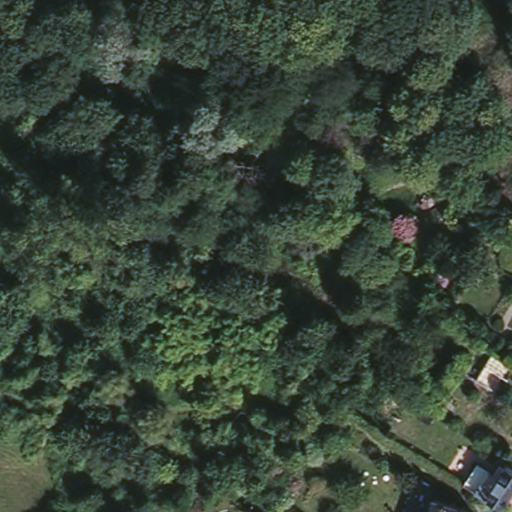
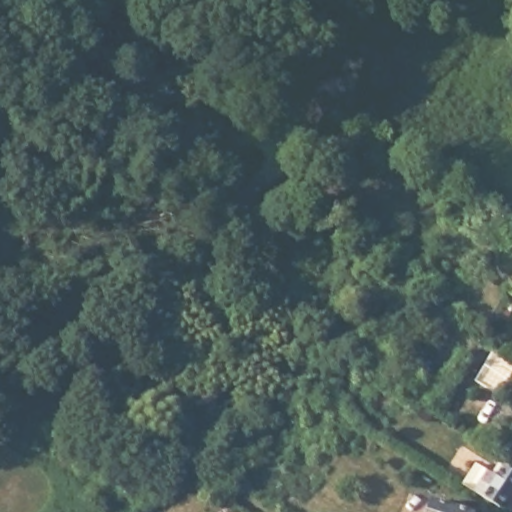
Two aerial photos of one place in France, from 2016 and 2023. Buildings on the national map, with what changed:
unchanged [(372,377),(379,381),(375,389),(368,384),(372,377)]
unchanged [(512,460),(512,498),(506,508),(480,491),(477,489),(467,483),(485,457),(497,465),(499,466),(506,456),(512,460)]
unchanged [(472,512),(423,512),(430,495),(472,512)]

